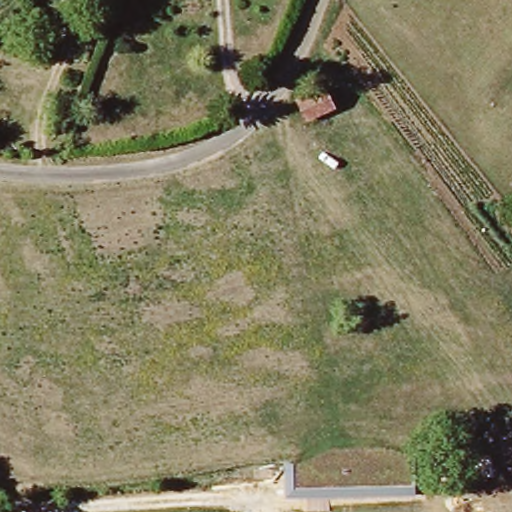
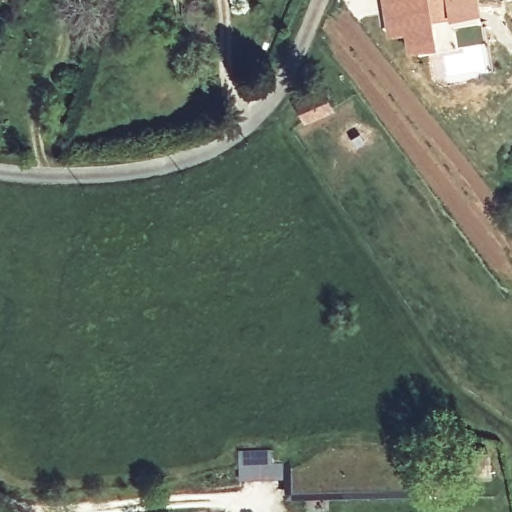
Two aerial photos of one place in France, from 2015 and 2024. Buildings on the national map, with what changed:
new [(434,21),(438,48),(406,51),(404,35),(385,38),(379,0),(479,0),(481,15),(434,21)]
unchanged [(326,87),(334,106),(308,114),(299,96),(326,87)]

